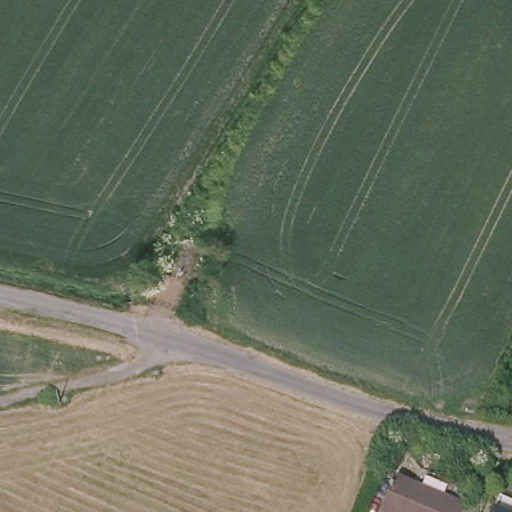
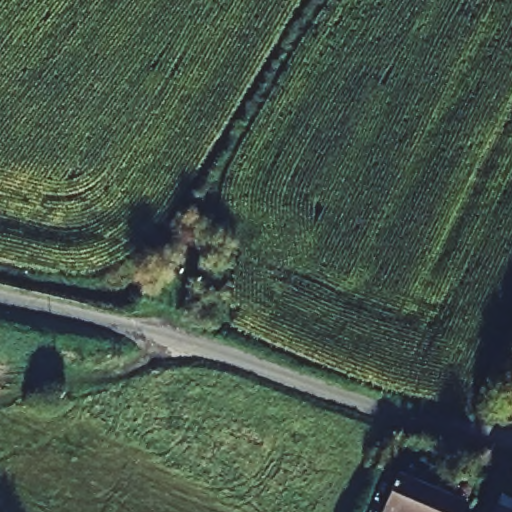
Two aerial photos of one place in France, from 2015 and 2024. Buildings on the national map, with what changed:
unchanged [(461,507),(459,512),(379,512),(393,478),(461,507)]
unchanged [(494,505),(512,512),(491,512),(494,505)]

